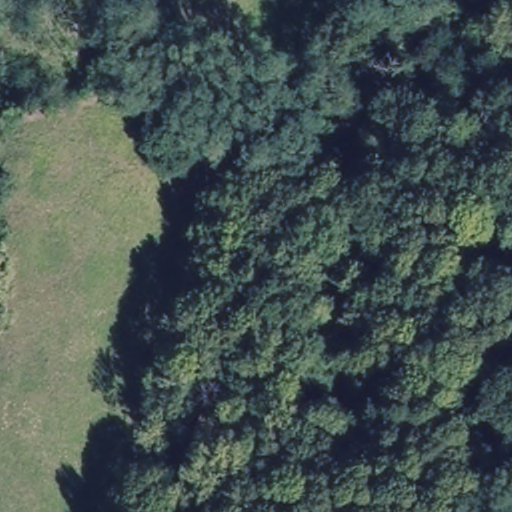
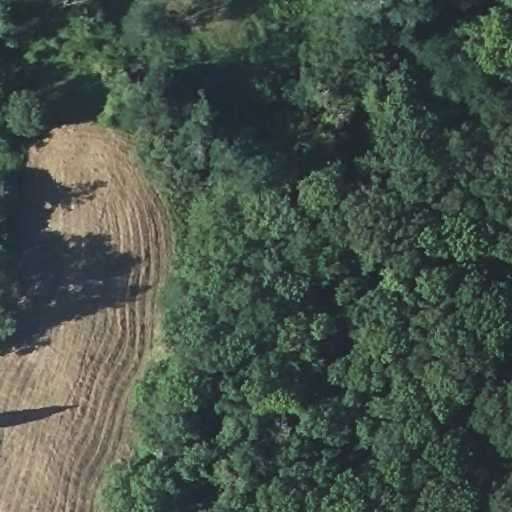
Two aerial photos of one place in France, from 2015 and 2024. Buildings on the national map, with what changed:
[]

